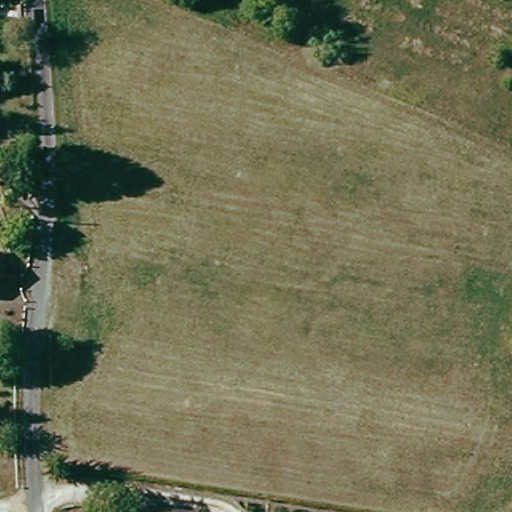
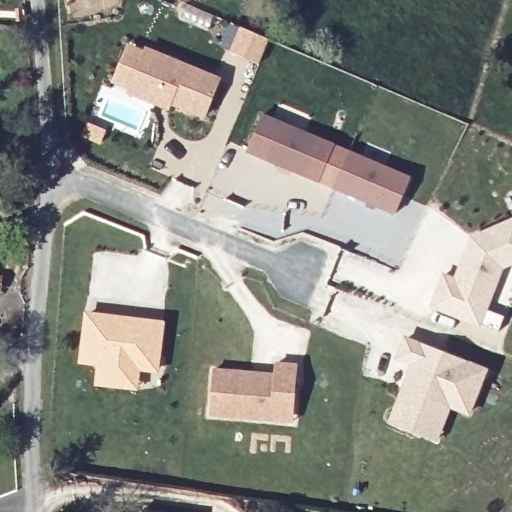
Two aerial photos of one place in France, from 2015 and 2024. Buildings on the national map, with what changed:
new [(245,27),(272,40),(261,64),(235,52),(245,27)]
new [(150,47),(222,78),(206,115),(162,96),(160,101),(132,89),(150,47)]
new [(263,114),(335,146),(319,180),(290,167),(291,162),(285,159),(282,164),(248,148),(263,114)]
new [(351,150),(411,177),(396,210),(335,183),(351,150)]
new [(444,275),(455,280),(459,271),(464,273),(467,265),(462,263),(472,239),(512,223),(512,264),(502,268),(478,325),(431,305),(444,275)]
unchanged [(0,294),(0,276),(1,276),(1,294),(0,294)]
new [(80,359),(87,315),(119,319),(118,323),(127,324),(128,320),(159,324),(152,370),(135,367),(132,386),(95,381),(99,362),(80,359)]
new [(411,362),(397,356),(404,338),(482,370),(464,414),(445,407),(432,438),(387,419),(407,373),(411,362)]
new [(270,417),(208,411),(212,368),(249,372),(248,377),(271,380),(273,363),(295,365),(290,404),(290,418),(270,417)]
unchanged [(192,512),(146,512),(147,503),(192,512)]

